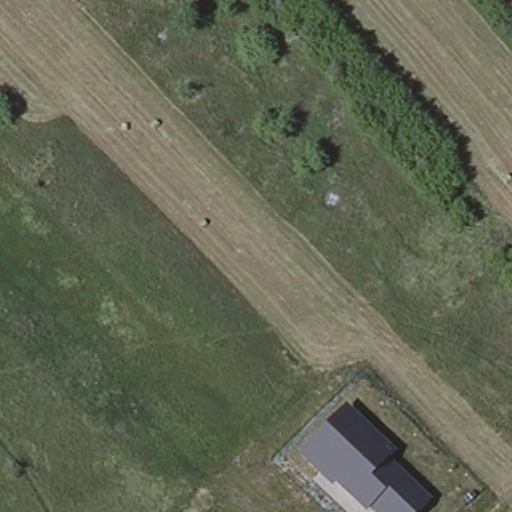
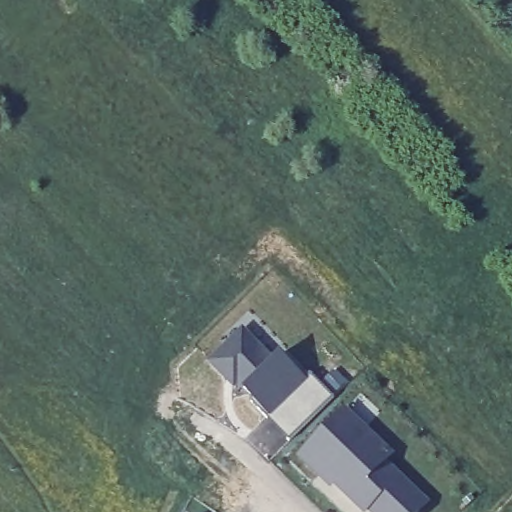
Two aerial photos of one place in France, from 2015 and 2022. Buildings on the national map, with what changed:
new [(269,417),(243,391),(238,385),(232,388),(207,360),(244,324),(275,359),(281,353),(305,381),(311,374),(332,398),(289,439),(269,417)]
unchanged [(395,455),(389,462),(430,503),(421,512),(369,512),(368,511),(367,512),(361,512),(335,485),(334,487),(330,490),(297,456),(345,408),(395,455)]

